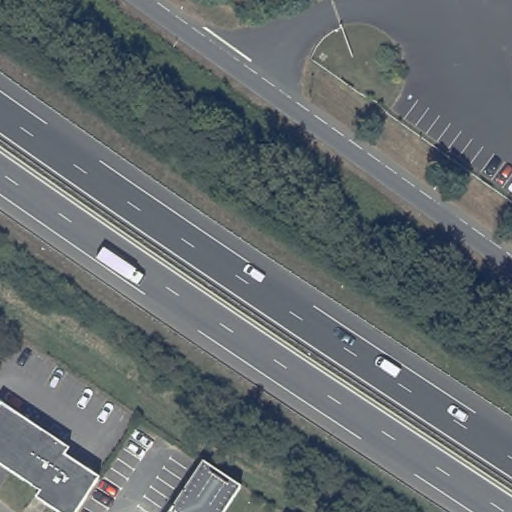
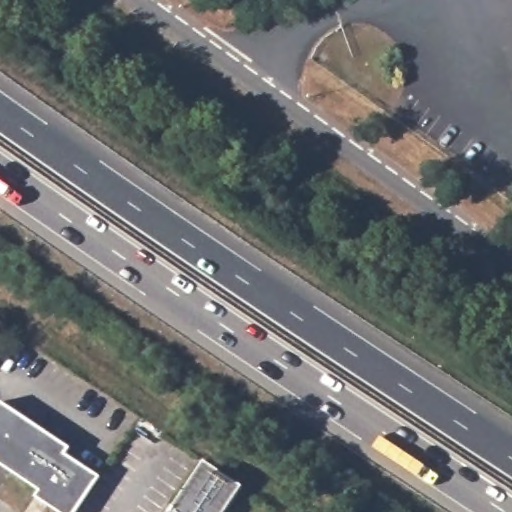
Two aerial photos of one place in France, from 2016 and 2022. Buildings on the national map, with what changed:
unchanged [(40,500),(44,493),(0,464),(0,412),(5,404),(74,450),(70,457),(79,463),(104,480),(82,512),(58,512),(40,500)]
unchanged [(208,459),(246,485),(227,512),(172,512),(208,459)]

